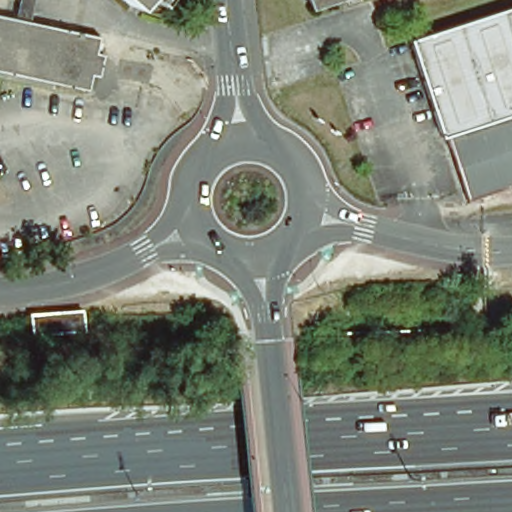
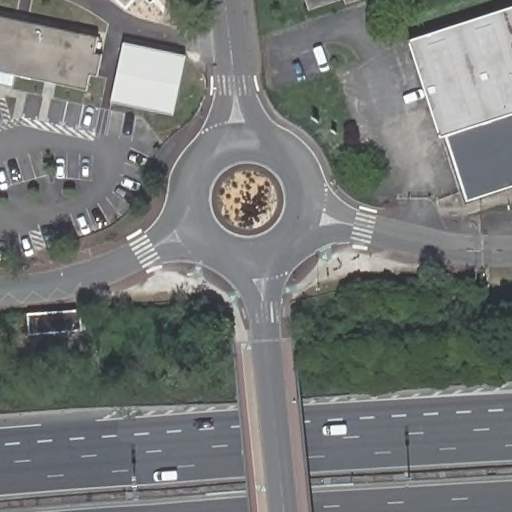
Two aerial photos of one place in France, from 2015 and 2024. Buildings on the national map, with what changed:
unchanged [(122,0),(133,0),(128,5),(122,0)]
unchanged [(306,0),(337,0),(309,9),(306,0)]
unchanged [(512,9),(512,189),(459,206),(438,139),(436,140),(403,45),(512,9)]
unchanged [(101,55),(97,75),(89,73),(85,89),(0,71),(0,16),(96,36),(93,53),(101,55)]
new [(112,101),(124,43),(185,56),(173,112),(112,101)]
unchanged [(96,309),(98,321),(99,331),(45,335),(44,325),(43,313),(96,309)]

